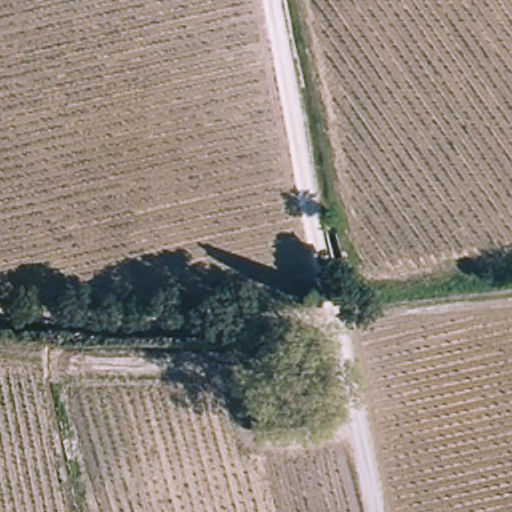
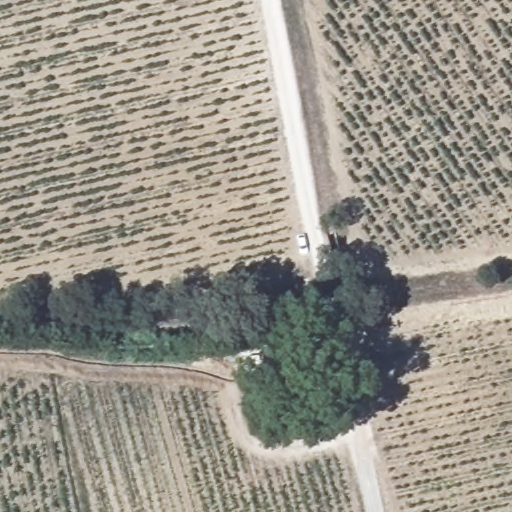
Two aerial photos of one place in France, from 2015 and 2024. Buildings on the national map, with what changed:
[]

